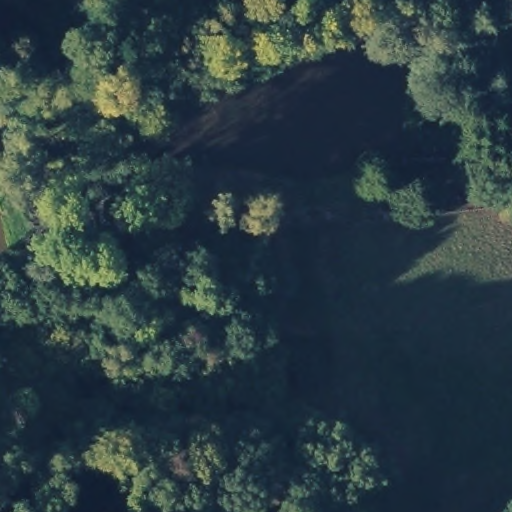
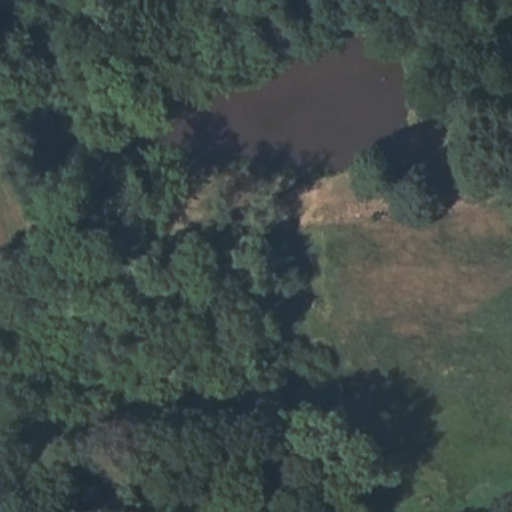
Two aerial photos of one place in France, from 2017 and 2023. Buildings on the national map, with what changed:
unchanged [(422,125),(422,131),(454,126),(457,151),(452,151),(452,161),(435,163),(435,149),(432,149),(432,155),(424,155),(423,145),(417,145),(416,127),(422,125)]

